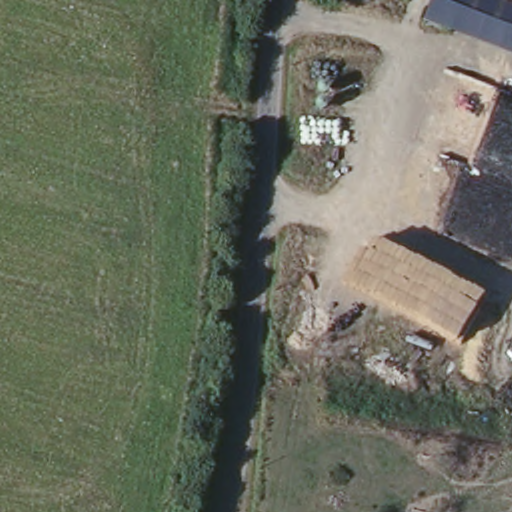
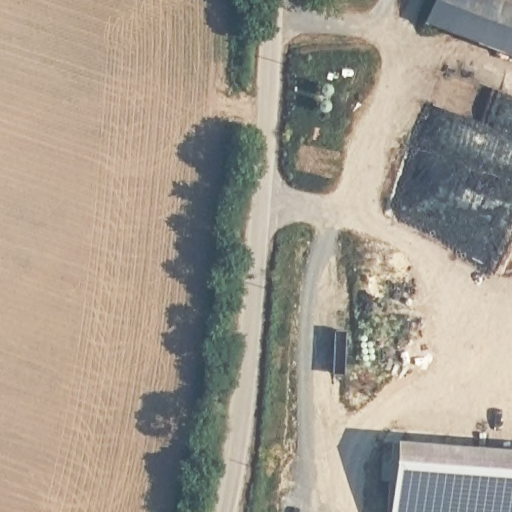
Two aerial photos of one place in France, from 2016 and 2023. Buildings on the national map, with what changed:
unchanged [(425,20),(432,0),(512,0),(512,52),(425,20)]
new [(390,460),(391,436),(512,443),(512,512),(386,512),(388,477),(380,476),(381,459),(390,460)]

